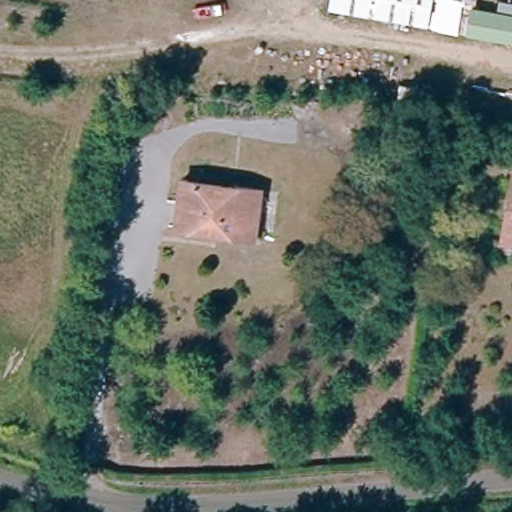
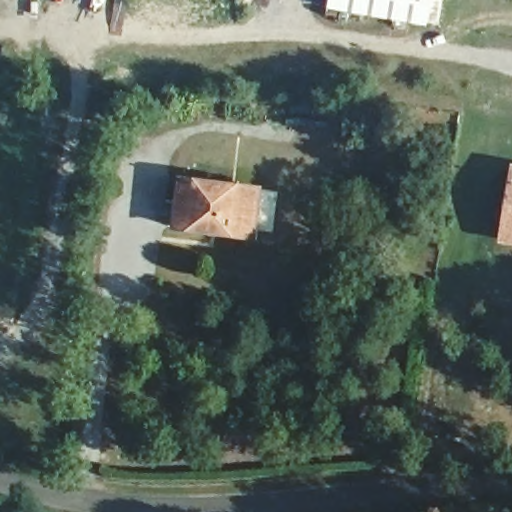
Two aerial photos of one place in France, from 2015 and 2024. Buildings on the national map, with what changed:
unchanged [(327,9),(329,0),(434,0),(429,28),(327,9)]
unchanged [(248,245),(178,229),(189,175),(262,190),(248,245)]
unchanged [(512,226),(512,245),(508,244),(512,226)]

